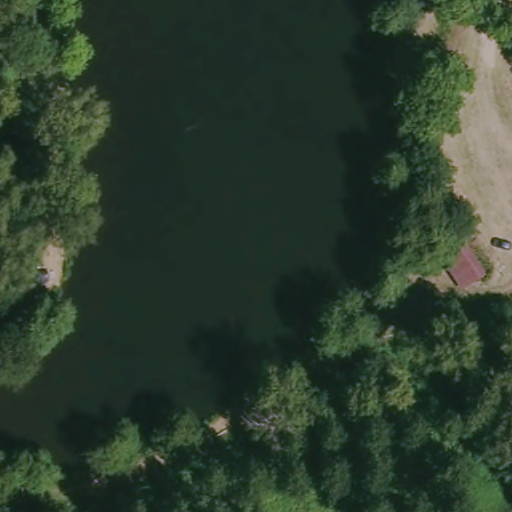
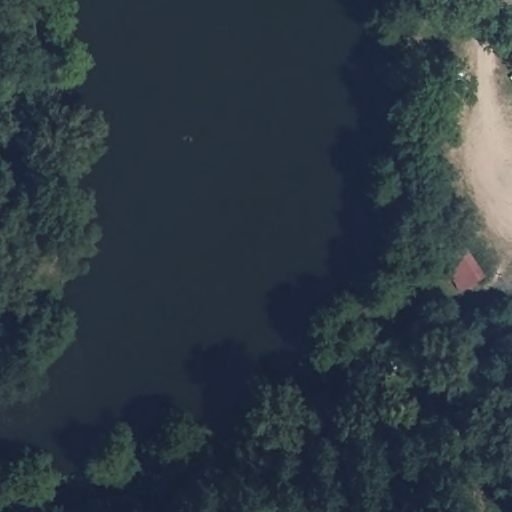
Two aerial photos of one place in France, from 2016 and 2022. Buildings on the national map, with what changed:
unchanged [(464,297),(439,262),(466,244),(491,279),(464,297)]

